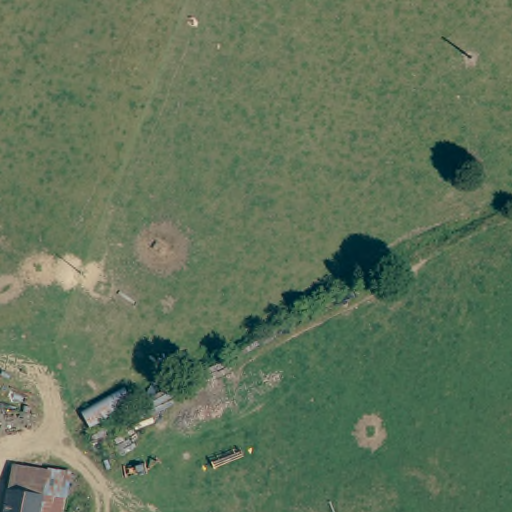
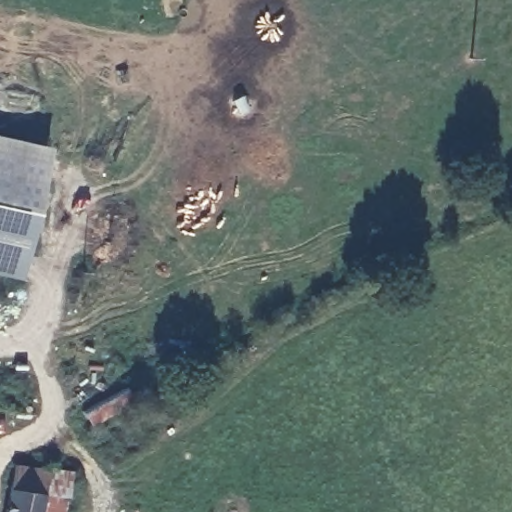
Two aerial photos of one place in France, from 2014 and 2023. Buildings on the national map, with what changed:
new [(13,276),(0,273),(0,138),(42,147),(13,276)]
unchanged [(10,496),(27,500),(30,488),(45,492),(43,502),(41,512),(7,512),(10,496)]
unchanged [(65,510),(65,512),(41,512),(43,502),(65,510)]

